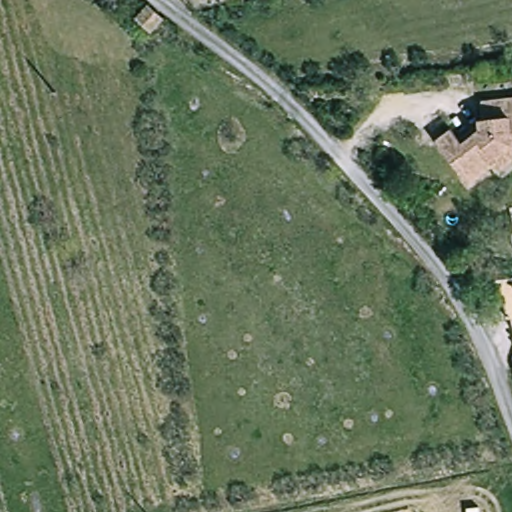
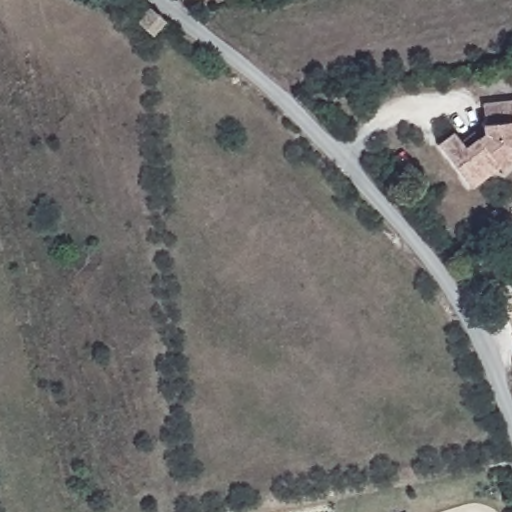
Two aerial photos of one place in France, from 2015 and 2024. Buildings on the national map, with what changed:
unchanged [(149,34),(135,21),(147,7),(162,20),(149,34)]
unchanged [(500,164),(470,186),(439,144),(455,131),(467,146),(485,132),(484,121),(487,121),(485,103),(512,100),(512,164),(505,170),(500,164)]

